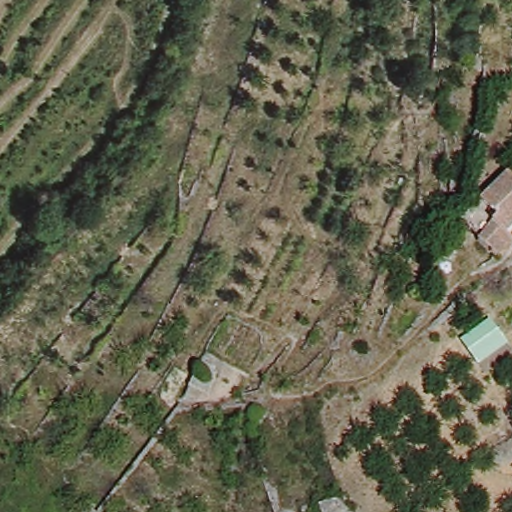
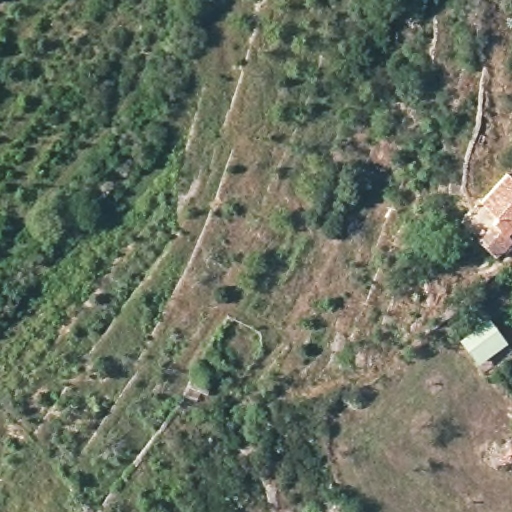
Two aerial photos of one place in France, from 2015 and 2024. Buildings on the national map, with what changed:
unchanged [(505,238),(510,244),(491,260),(473,239),(497,215),(486,201),(512,177),(512,231),(505,238)]
unchanged [(511,343),(477,368),(459,341),(494,317),(511,343)]
unchanged [(175,407),(155,397),(165,378),(185,388),(175,407)]
unchanged [(328,512),(325,500),(348,492),(355,512),(328,512)]

